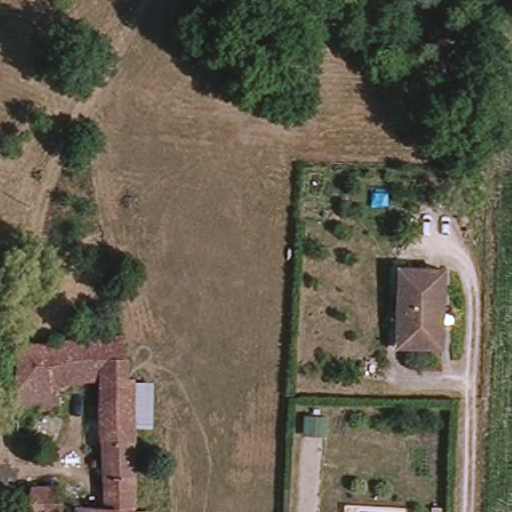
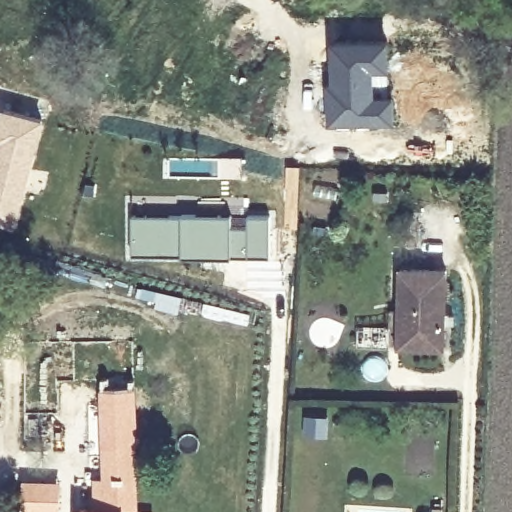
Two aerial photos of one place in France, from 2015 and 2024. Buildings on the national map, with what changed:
new [(330,40),(389,39),(389,85),(376,85),(376,95),(393,95),(393,123),(328,124),(327,94),(330,40)]
new [(45,118),(15,229),(0,225),(0,108),(0,106),(45,118)]
new [(218,156),(244,156),(243,177),(217,176),(218,156)]
new [(130,214),(233,213),(232,222),(231,256),(180,257),(130,256),(130,214)]
new [(232,222),(246,222),(245,213),(270,214),(270,255),(231,256),(232,222)]
unchanged [(400,315),(401,272),(446,273),(445,352),(399,351),(400,315)]
new [(137,286),(182,297),(177,315),(152,308),(153,303),(134,297),(137,286)]
new [(202,302),(250,314),(247,326),(199,315),(202,302)]
unchanged [(22,412),(22,388),(25,344),(30,343),(124,338),(125,357),(133,360),(132,381),(153,383),(152,429),(137,430),(138,512),(77,512),(77,508),(103,508),(100,446),(100,432),(100,382),(61,388),(59,403),(48,411),(40,409),(30,436),(22,434),(22,412)]
unchanged [(301,418),(322,419),(321,436),(300,434),(301,418)]
unchanged [(63,484),(65,512),(20,512),(21,486),(63,484)]

